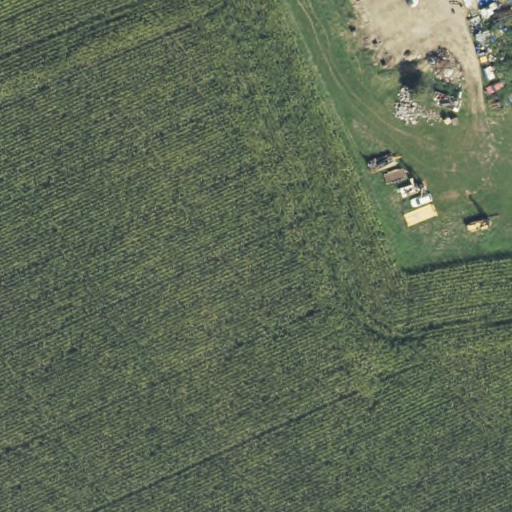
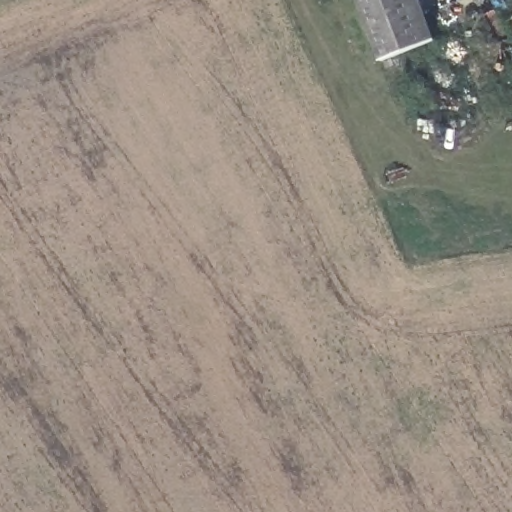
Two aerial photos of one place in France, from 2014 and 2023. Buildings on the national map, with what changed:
new [(437,40),(381,61),(356,0),(421,0),(437,40)]

